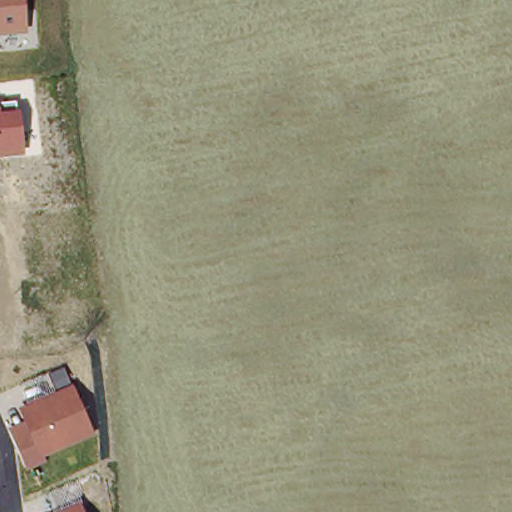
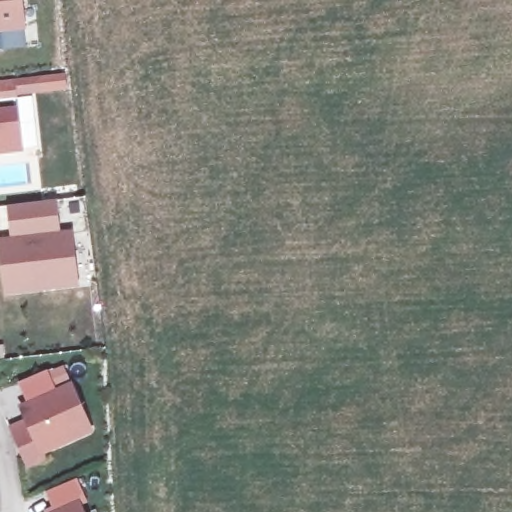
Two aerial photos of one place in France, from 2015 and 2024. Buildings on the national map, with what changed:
unchanged [(0,0),(24,0),(27,31),(0,34),(0,0)]
unchanged [(22,154),(0,156),(0,102),(15,100),(22,154)]
new [(8,209),(52,205),(56,239),(69,238),(74,287),(5,295),(0,249),(0,245),(12,244),(11,234),(8,209)]
new [(35,376),(42,393),(17,404),(10,387),(35,376)]
unchanged [(71,381),(92,432),(43,455),(47,462),(27,471),(9,427),(24,420),(19,405),(71,381)]
unchanged [(77,500),(83,512),(53,512),(77,500)]

